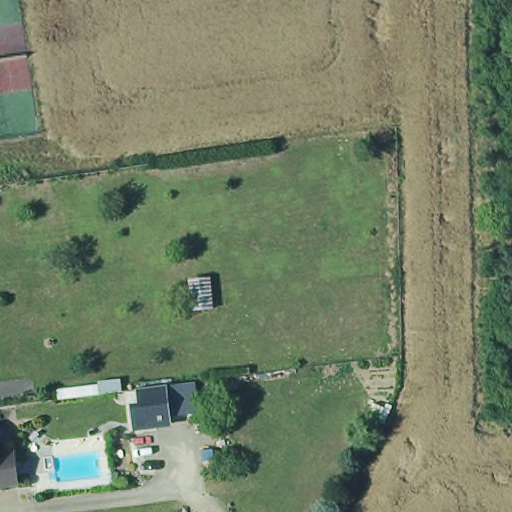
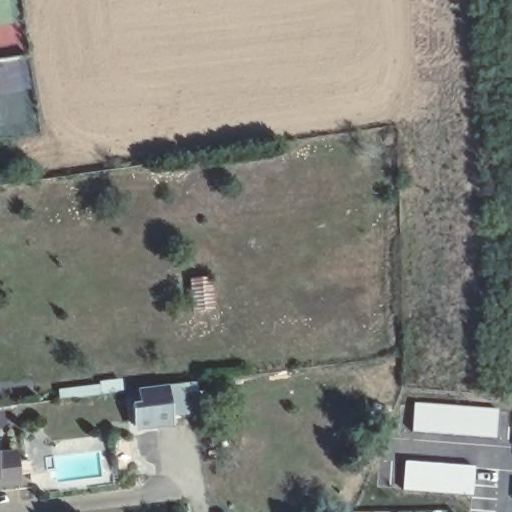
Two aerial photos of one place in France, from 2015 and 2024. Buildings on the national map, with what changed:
demolished [(33,53),(36,85),(0,90),(0,85),(0,54),(33,53)]
unchanged [(133,429),(126,387),(195,381),(196,412),(172,414),(173,426),(133,429)]
new [(413,401),(500,408),(497,439),(411,432),(413,401)]
unchanged [(12,486),(0,487),(0,457),(10,456),(12,486)]
new [(403,460),(477,465),(473,497),(401,491),(403,460)]

